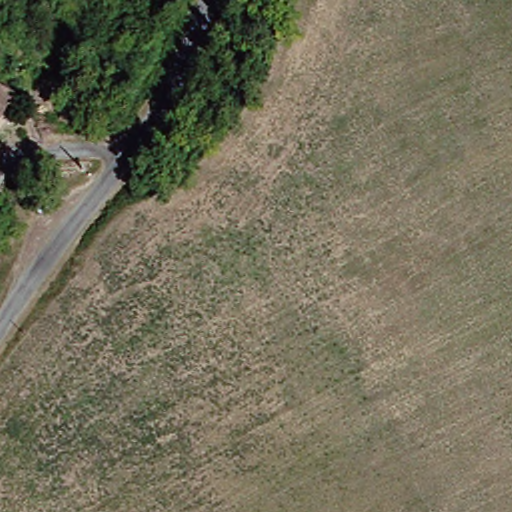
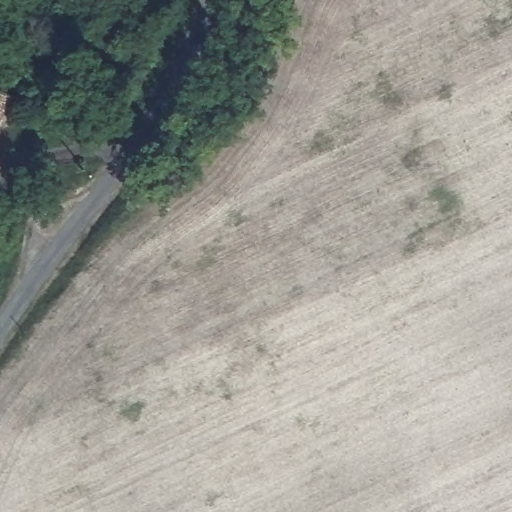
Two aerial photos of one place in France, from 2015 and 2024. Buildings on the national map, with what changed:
unchanged [(0,100),(4,102),(0,111),(0,100)]

